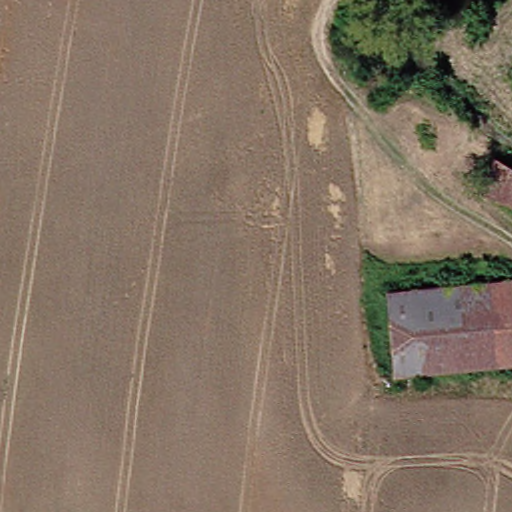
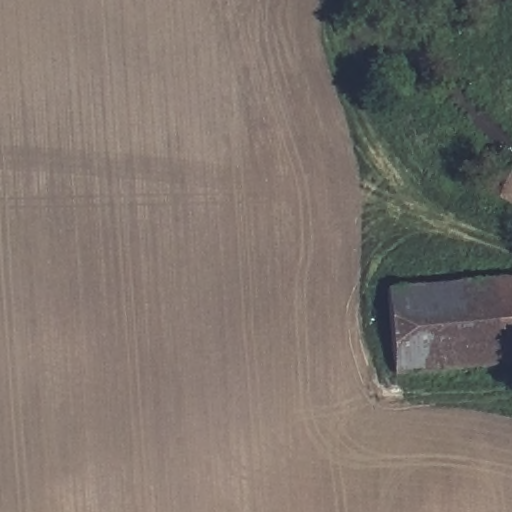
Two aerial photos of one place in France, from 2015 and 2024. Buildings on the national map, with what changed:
unchanged [(477,186),(490,158),(512,169),(512,196),(510,202),(477,186)]
unchanged [(512,284),(512,369),(492,370),(486,286),(512,284)]
unchanged [(390,379),(383,294),(486,286),(492,370),(390,379)]

